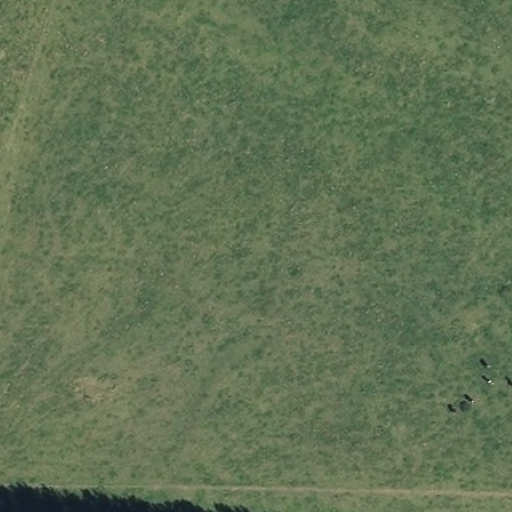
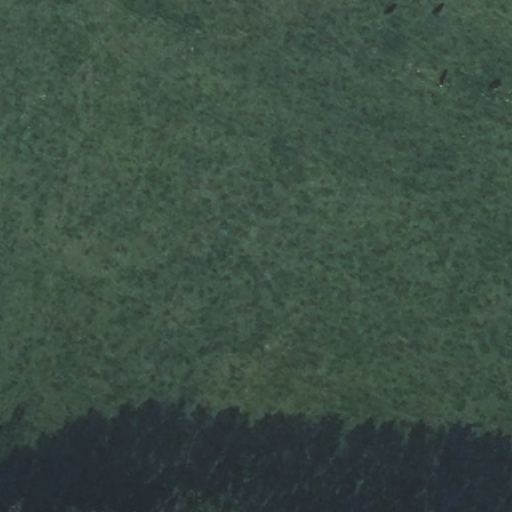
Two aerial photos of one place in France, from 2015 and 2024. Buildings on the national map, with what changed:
[]

